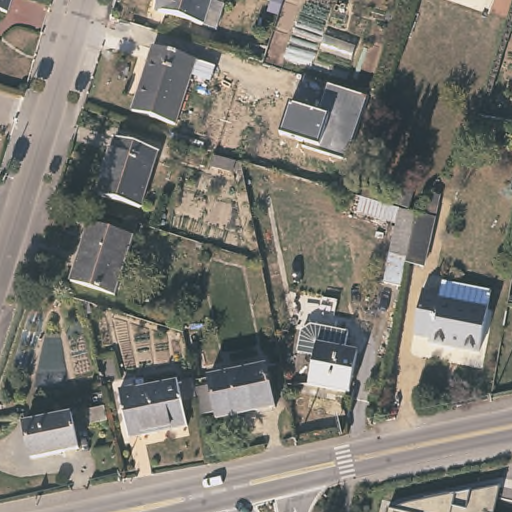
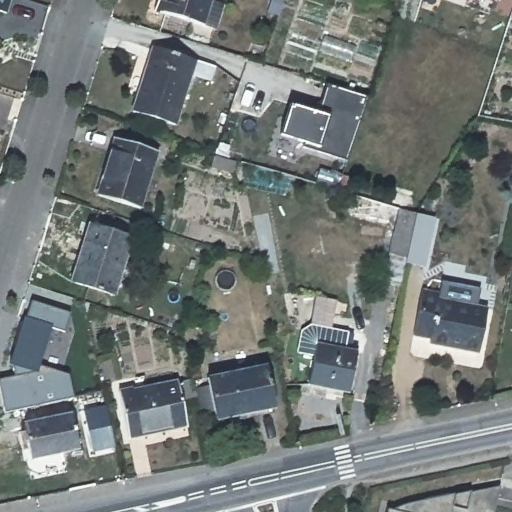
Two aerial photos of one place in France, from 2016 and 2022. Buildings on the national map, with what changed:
unchanged [(3,11),(0,10),(0,0),(7,0),(3,11)]
unchanged [(208,1),(221,5),(214,29),(151,10),(154,0),(208,0),(208,1)]
unchanged [(280,14),(269,10),(272,0),(284,0),(280,14)]
unchanged [(213,64),(208,81),(188,75),(172,124),(129,110),(150,44),(213,64)]
unchanged [(366,97),(346,159),(303,148),(305,141),(281,134),(292,105),(318,111),(329,85),(366,97)]
unchanged [(159,151),(141,208),(98,194),(116,137),(159,151)]
unchanged [(235,161),(240,160),(242,169),(235,169),(234,173),(212,166),(215,155),(235,161)]
unchanged [(397,223),(357,212),(362,196),(400,207),(417,212),(431,191),(441,194),(436,216),(426,266),(407,262),(402,286),(385,282),(397,223)]
unchanged [(136,219),(134,227),(123,224),(126,215),(136,219)]
unchanged [(133,231),(115,290),(71,276),(89,217),(133,231)]
unchanged [(476,287),(490,290),(486,308),(488,308),(480,351),(430,341),(430,336),(415,333),(422,289),(440,292),(442,281),(476,287)]
new [(0,394),(0,378),(18,375),(12,362),(24,317),(29,300),(70,313),(64,332),(48,328),(38,367),(66,374),(71,395),(3,409),(0,394)]
unchanged [(345,337),(341,354),(354,356),(345,397),(311,390),(304,388),(310,359),(294,356),(298,334),(307,329),(345,337)]
unchanged [(205,385),(203,377),(264,364),(272,407),(211,420),(210,413),(196,415),(193,399),(191,388),(205,385)]
unchanged [(193,399),(178,402),(182,426),(125,438),(115,390),(129,387),(127,379),(141,376),(143,384),(172,379),(175,380),(188,378),(191,388),(193,399)]
unchanged [(108,419),(89,422),(86,409),(105,407),(108,419)]
unchanged [(79,448),(32,458),(26,422),(72,413),(79,448)]
unchanged [(498,488),(494,512),(398,512),(400,509),(498,488)]
unchanged [(393,512),(388,512),(389,510),(393,512)]

